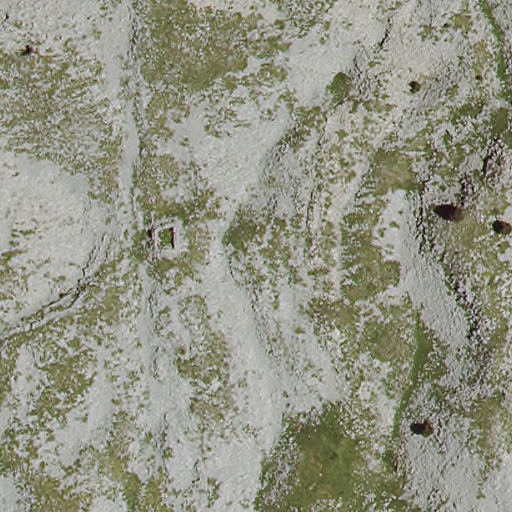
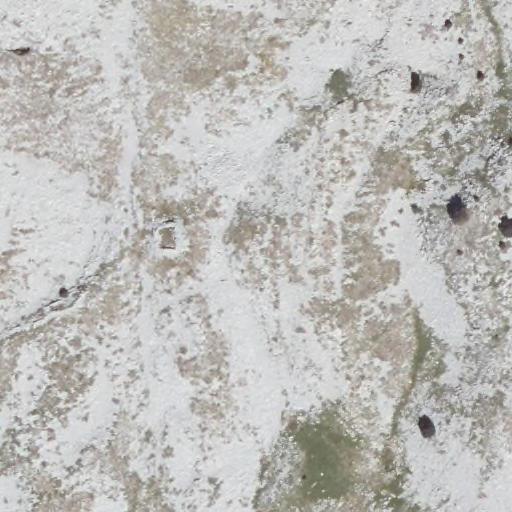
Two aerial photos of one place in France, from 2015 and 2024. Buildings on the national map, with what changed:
[]

